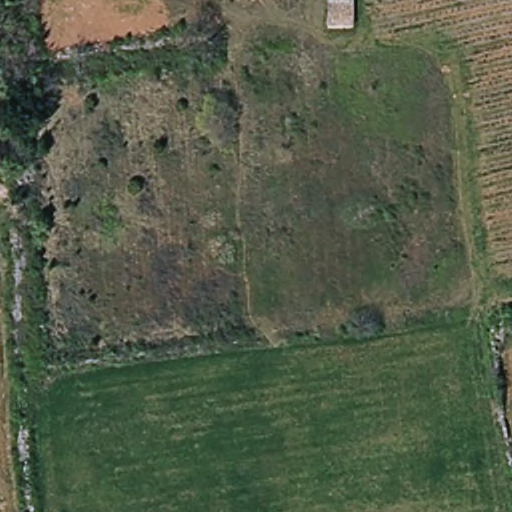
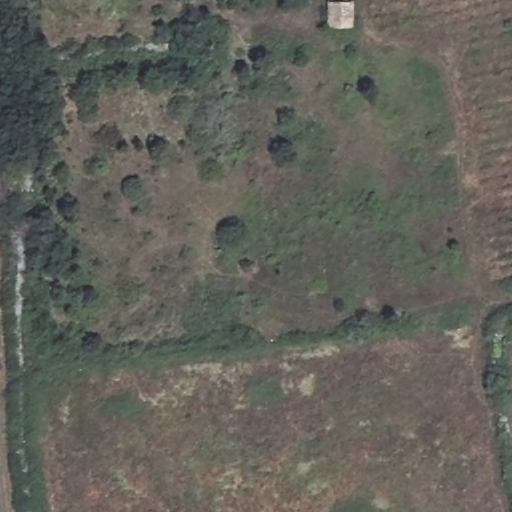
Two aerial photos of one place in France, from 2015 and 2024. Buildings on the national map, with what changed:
unchanged [(328,0),(347,0),(348,3),(352,4),(353,34),(328,34),(328,0)]

